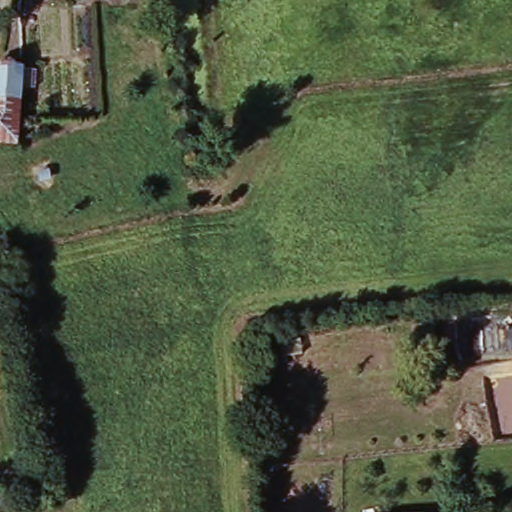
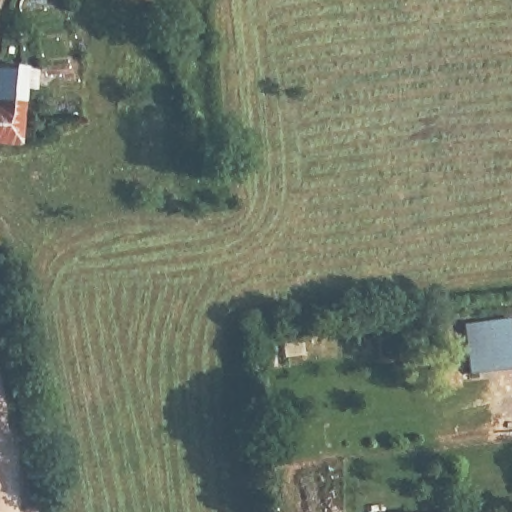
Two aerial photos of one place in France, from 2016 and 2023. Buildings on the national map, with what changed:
unchanged [(23,69),(20,138),(0,138),(0,66),(23,69)]
new [(512,368),(470,374),(464,322),(509,317),(512,338),(512,368)]
unchanged [(440,512),(413,512),(439,511),(440,512)]

